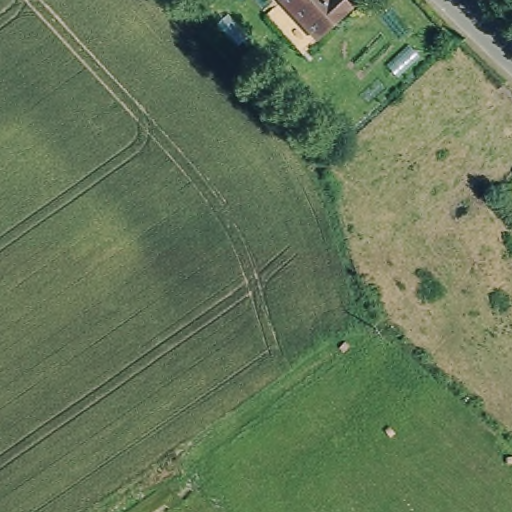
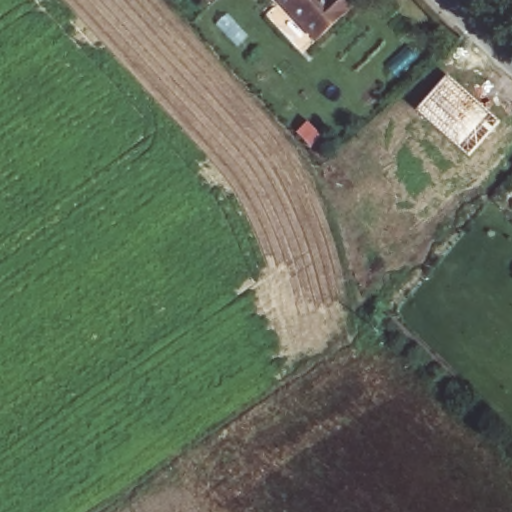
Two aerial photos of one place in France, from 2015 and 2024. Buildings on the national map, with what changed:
unchanged [(316,37),(280,0),(344,0),(350,6),(316,37)]
new [(417,109),(448,76),(500,122),(469,156),(417,109)]

